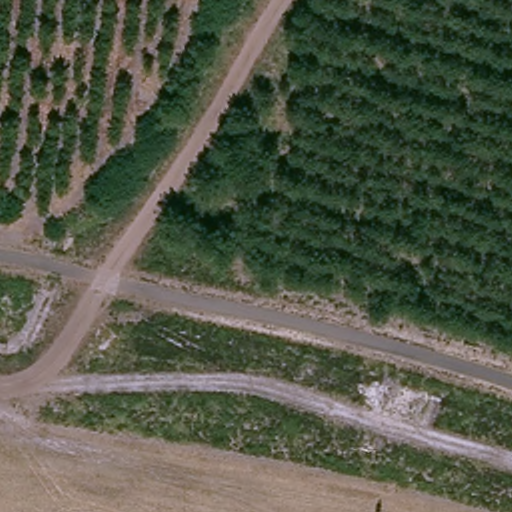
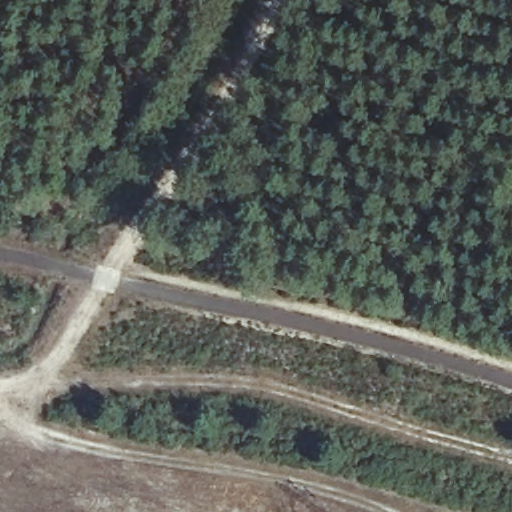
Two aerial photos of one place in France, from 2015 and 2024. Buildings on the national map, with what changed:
[]

